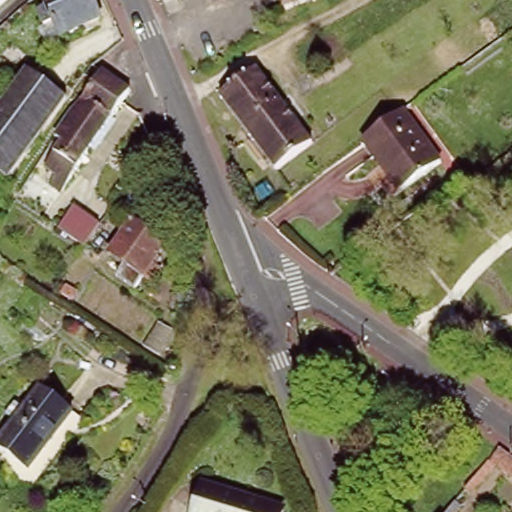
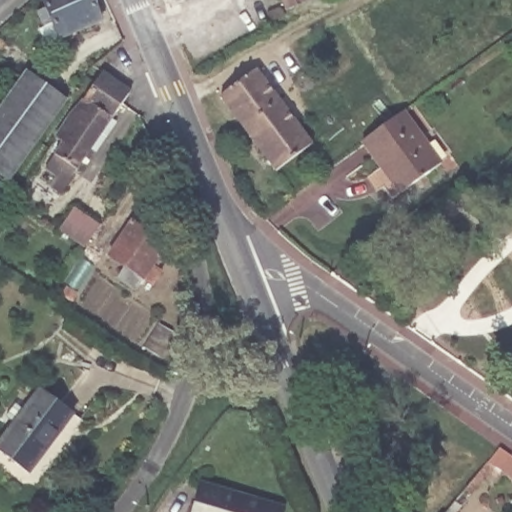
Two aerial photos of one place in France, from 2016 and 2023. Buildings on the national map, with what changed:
unchanged [(0,0),(5,0),(0,4),(0,0)]
unchanged [(61,33),(53,14),(47,16),(43,8),(49,5),(47,0),(94,0),(100,16),(61,33)]
unchanged [(156,0),(162,0),(156,2),(156,0)]
unchanged [(281,0),(302,0),(284,8),(281,0)]
unchanged [(80,101),(85,96),(86,96),(108,64),(136,83),(128,95),(68,183),(56,175),(58,172),(53,168),(56,165),(50,160),(67,135),(60,130),(80,101)]
unchanged [(220,96),(255,70),(311,145),(276,171),(220,96)]
unchanged [(62,101),(3,183),(0,180),(0,102),(15,82),(22,72),(62,101)]
unchanged [(388,122),(402,112),(441,165),(400,194),(361,141),(367,137),(388,122)]
unchanged [(85,247),(57,230),(72,207),(99,224),(85,247)]
unchanged [(138,291),(146,278),(130,267),(152,234),(186,257),(178,270),(182,273),(177,281),(181,284),(172,296),(164,290),(155,303),(138,291)]
unchanged [(123,237),(137,247),(121,270),(107,260),(123,237)]
unchanged [(0,424),(0,422),(35,377),(66,402),(77,410),(43,454),(32,446),(0,424)]
unchanged [(0,456),(0,424),(32,446),(43,454),(26,476),(0,456)]
unchanged [(494,465),(470,493),(465,489),(500,448),(512,456),(512,477),(494,465)]
unchanged [(284,505),(282,512),(194,512),(203,481),(284,505)]
unchanged [(460,504),(455,511),(456,512),(445,512),(455,501),(460,504)]

